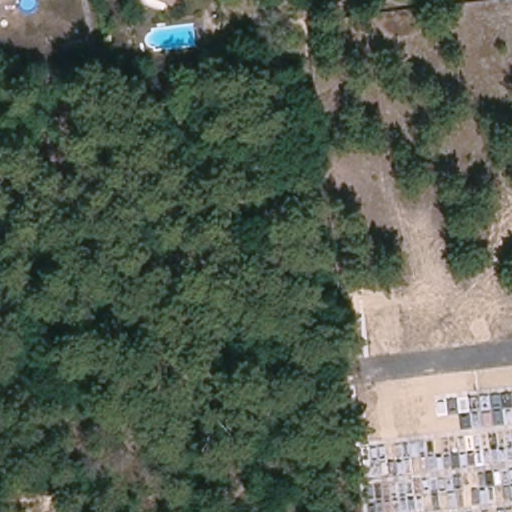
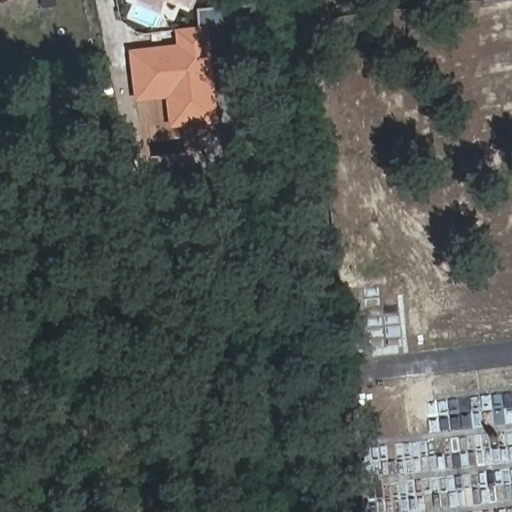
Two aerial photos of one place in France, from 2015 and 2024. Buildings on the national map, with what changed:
new [(199,27),(197,10),(230,7),(233,37),(209,40),(216,125),(169,129),(166,99),(134,102),(128,51),(176,45),(174,29),(199,27)]
unchanged [(238,150),(219,152),(216,128),(235,126),(238,150)]

